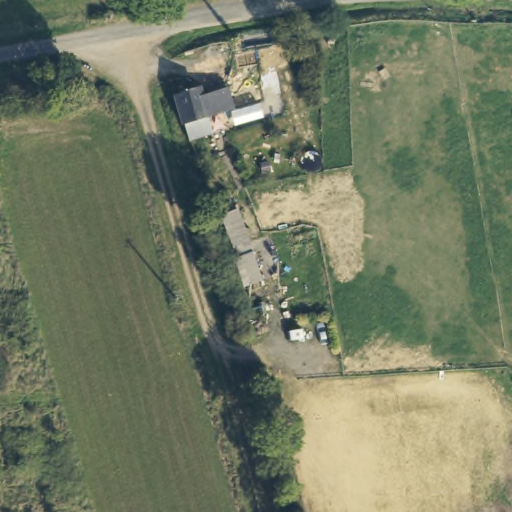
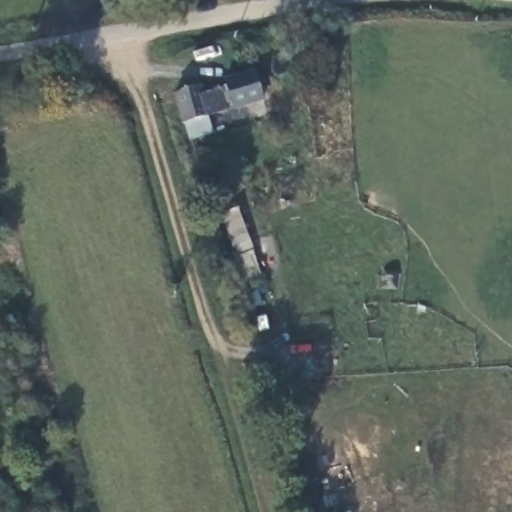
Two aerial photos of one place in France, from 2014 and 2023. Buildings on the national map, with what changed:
unchanged [(234,107),(207,117),(213,132),(192,140),(186,123),(185,124),(175,95),(198,87),(201,96),(227,87),(234,107)]

